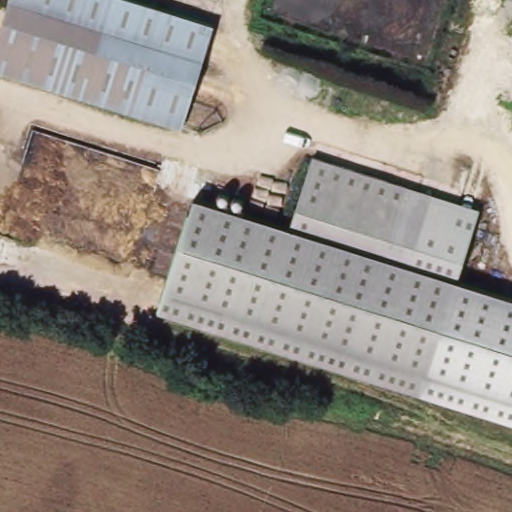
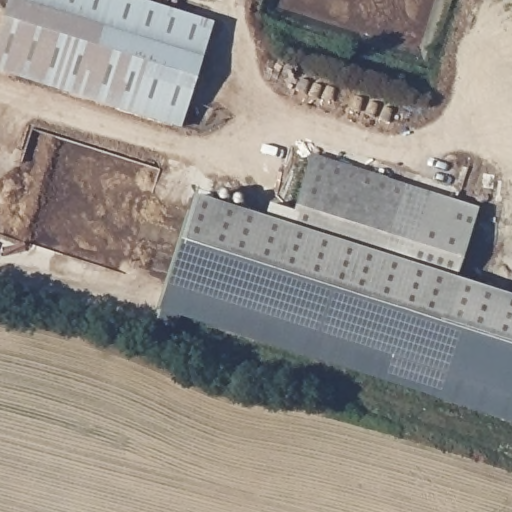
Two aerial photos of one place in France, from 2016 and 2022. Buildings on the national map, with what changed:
unchanged [(11,0),(135,0),(214,25),(202,61),(181,127),(67,92),(0,70),(0,34),(10,1),(11,0)]
unchanged [(479,207),(420,394),(156,310),(192,197),(288,226),(311,156),(479,207)]
unchanged [(512,298),(512,423),(420,394),(455,281),(512,298)]

